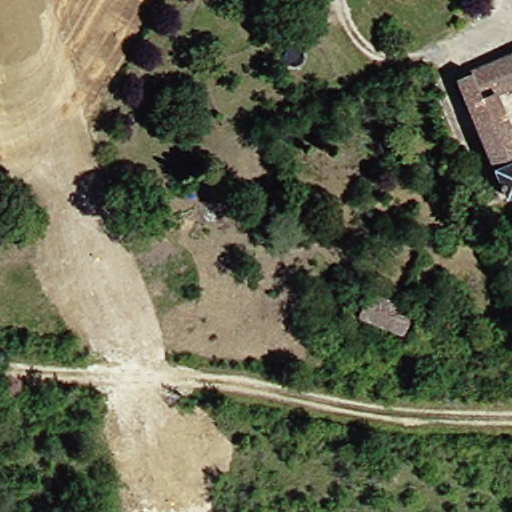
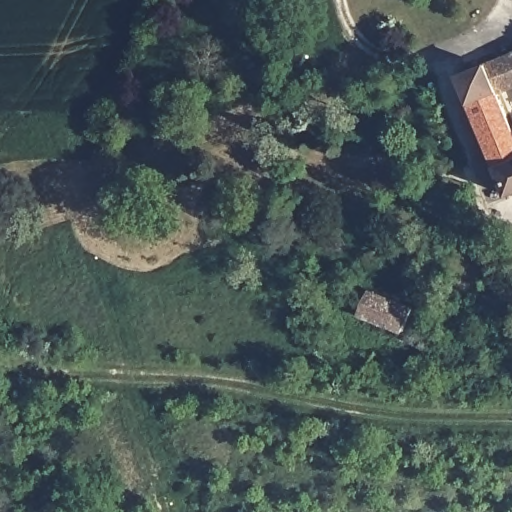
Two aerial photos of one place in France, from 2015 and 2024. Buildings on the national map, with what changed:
unchanged [(490,169),(453,80),(469,73),(512,54),(512,90),(497,96),(512,130),(512,193),(503,197),(490,169)]
unchanged [(413,307),(403,335),(356,317),(366,292),(413,307)]

